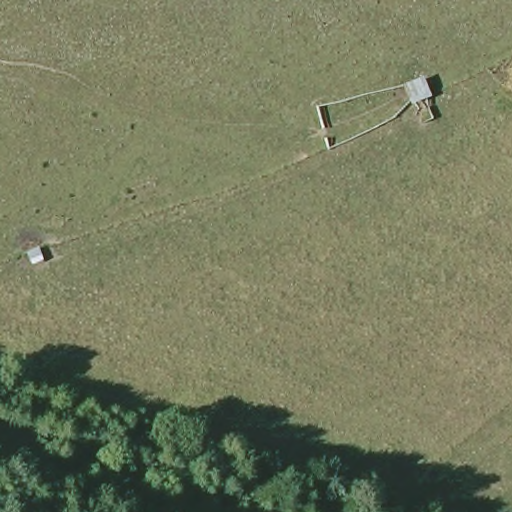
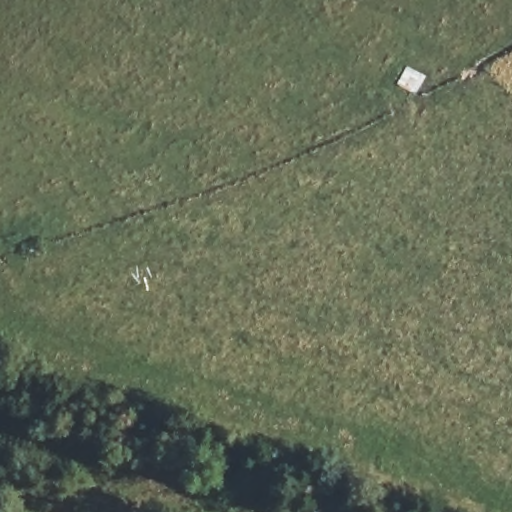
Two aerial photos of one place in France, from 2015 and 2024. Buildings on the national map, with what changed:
unchanged [(405,99),(397,78),(418,70),(425,91),(405,99)]
unchanged [(40,258),(23,263),(19,246),(35,241),(40,258)]

